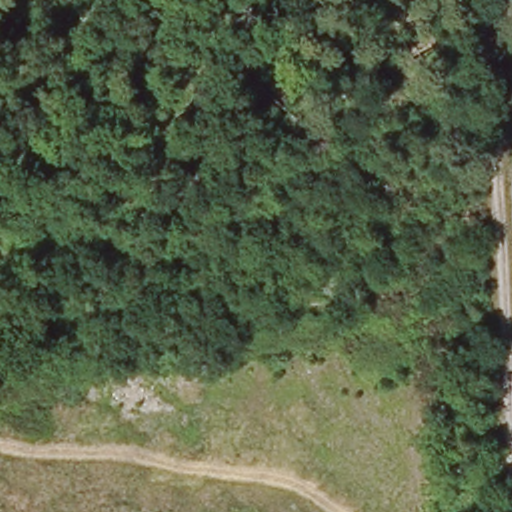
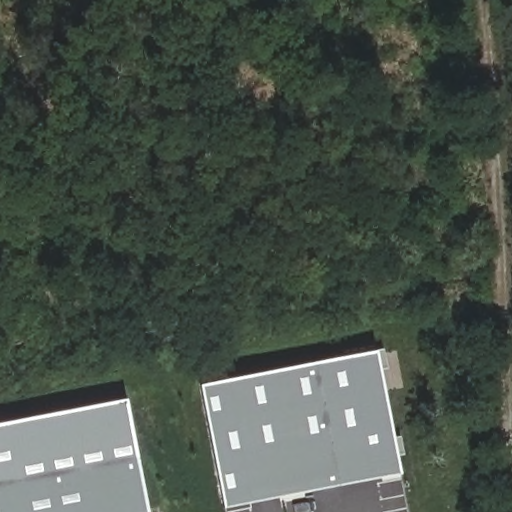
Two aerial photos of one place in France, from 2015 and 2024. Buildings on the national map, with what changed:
new [(398,471),(225,505),(201,386),(375,352),(398,471)]
new [(146,512),(0,512),(0,424),(124,400),(146,512)]

